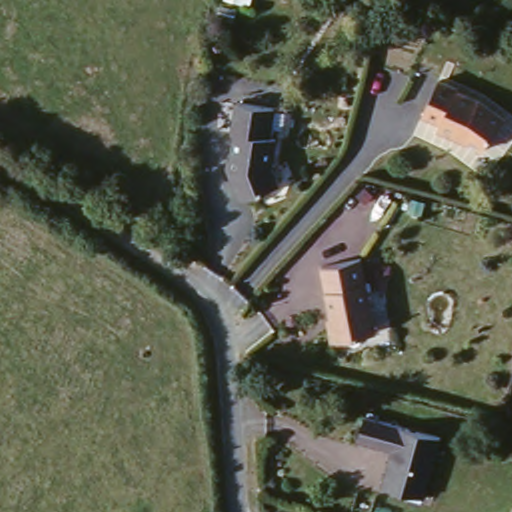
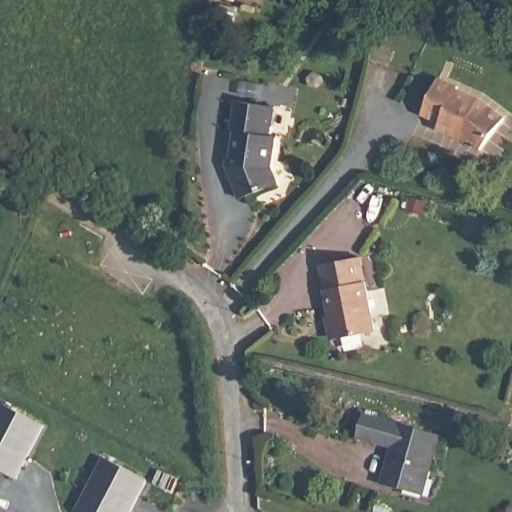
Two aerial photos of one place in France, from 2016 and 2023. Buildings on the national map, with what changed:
unchanged [(444,77),(463,86),(462,89),(484,99),(509,117),(484,148),(469,136),(470,135),(460,130),(459,134),(442,125),(445,119),(427,111),(444,77)]
unchanged [(234,130),(240,101),(277,108),(272,136),(279,137),(273,167),(279,185),(242,198),(234,178),(238,177),(233,165),(238,131),(234,130)]
unchanged [(320,262),(359,256),(373,330),(333,337),(320,262)]
new [(17,484),(0,474),(0,408),(1,405),(49,429),(17,484)]
unchanged [(442,438),(424,498),(382,484),(394,447),(360,435),(368,411),(442,438)]
new [(131,512),(81,512),(108,463),(148,482),(131,512)]

